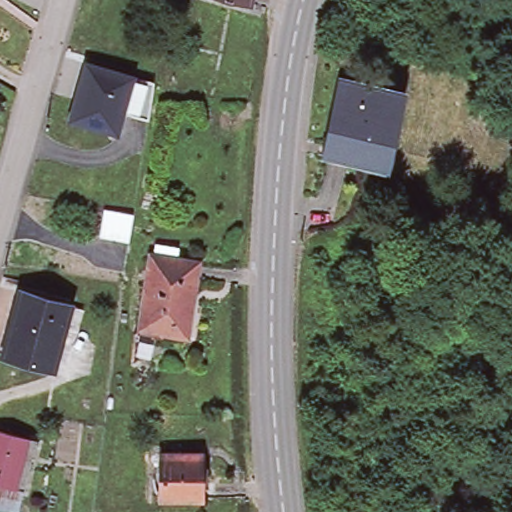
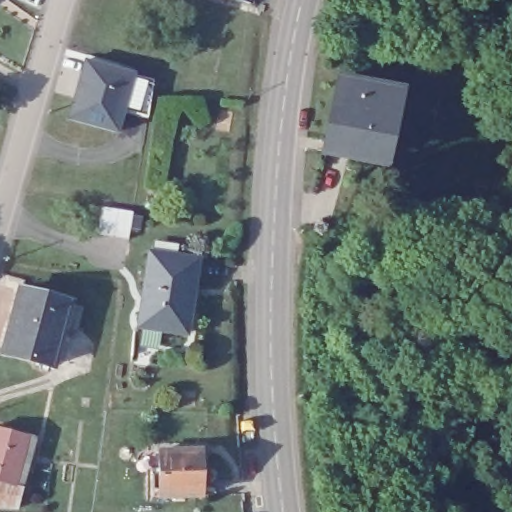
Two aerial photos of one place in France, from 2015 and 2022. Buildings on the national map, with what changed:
unchanged [(249,5),(229,0),(250,0),(249,5)]
unchanged [(69,120),(85,61),(133,73),(155,79),(154,89),(150,118),(122,111),(117,133),(69,120)]
unchanged [(338,83),(397,92),(385,159),(327,149),(338,83)]
unchanged [(152,246),(198,252),(190,326),(142,320),(152,246)]
unchanged [(22,291),(71,305),(52,367),(3,354),(22,291)]
unchanged [(40,439),(30,487),(25,509),(4,508),(0,508),(0,430),(30,437),(40,439)]
unchanged [(201,453),(202,497),(160,497),(160,453),(201,453)]

